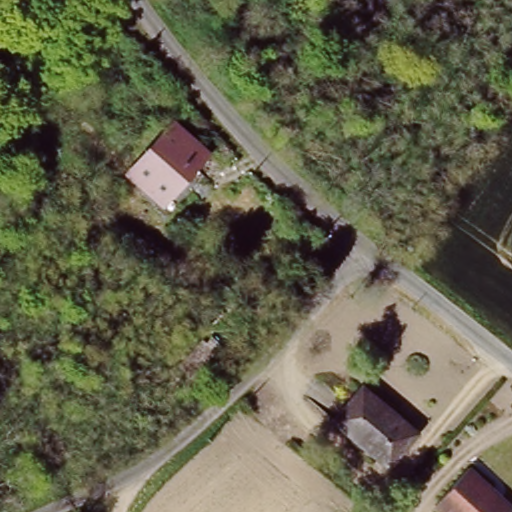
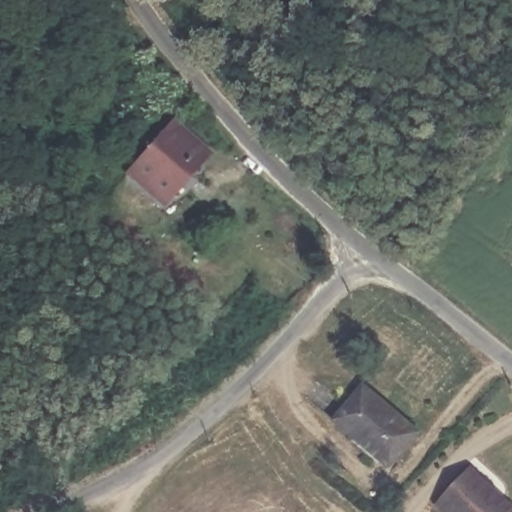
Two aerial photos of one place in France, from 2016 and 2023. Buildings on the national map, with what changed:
unchanged [(205,147),(193,161),(203,172),(170,210),(122,170),(170,116),(205,147)]
unchanged [(412,436),(385,470),(330,425),(357,391),(412,436)]
unchanged [(507,512),(439,512),(430,504),(464,465),(511,507),(507,512)]

